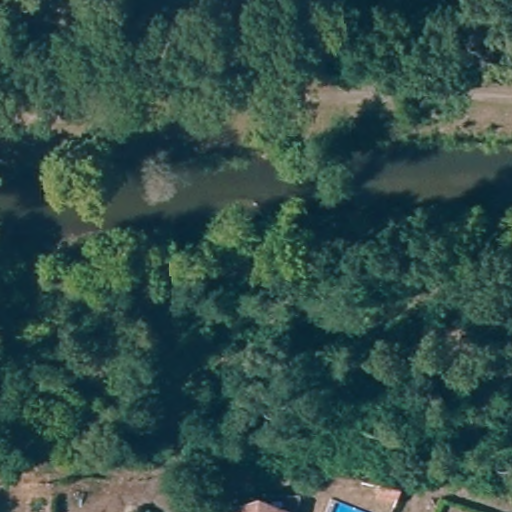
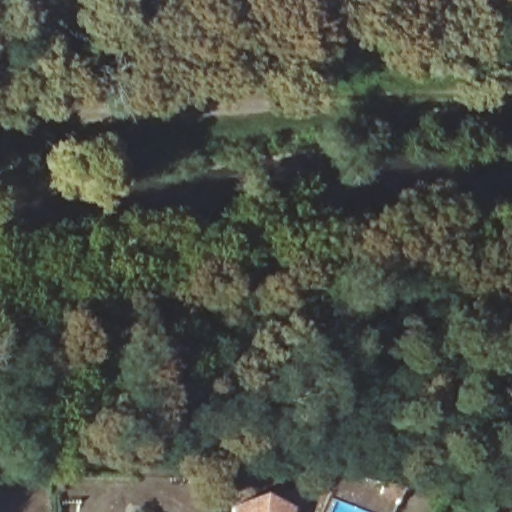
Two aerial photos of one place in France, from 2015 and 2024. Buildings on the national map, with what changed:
unchanged [(293,512),(242,512),(241,490),(296,492),(293,512)]

